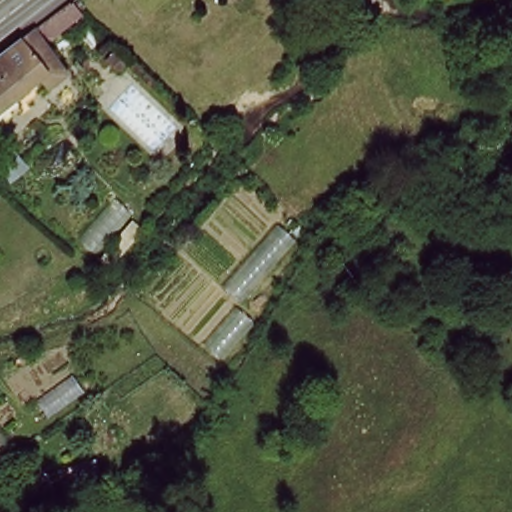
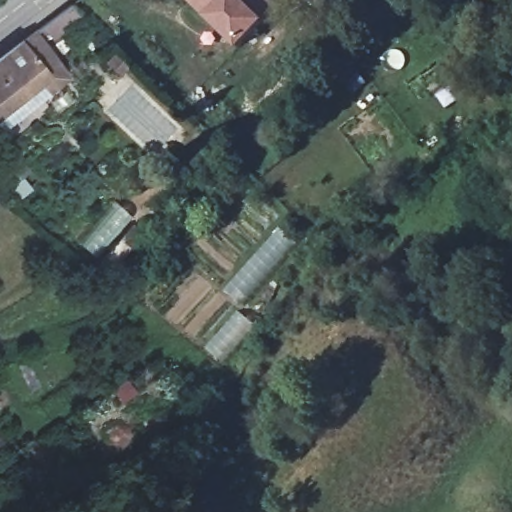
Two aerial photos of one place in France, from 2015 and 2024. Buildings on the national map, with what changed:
new [(273,0),(282,9),(240,52),(185,1),(185,0),(273,0)]
unchanged [(39,32),(65,68),(53,77),(0,115),(0,62),(27,42),(39,32)]

